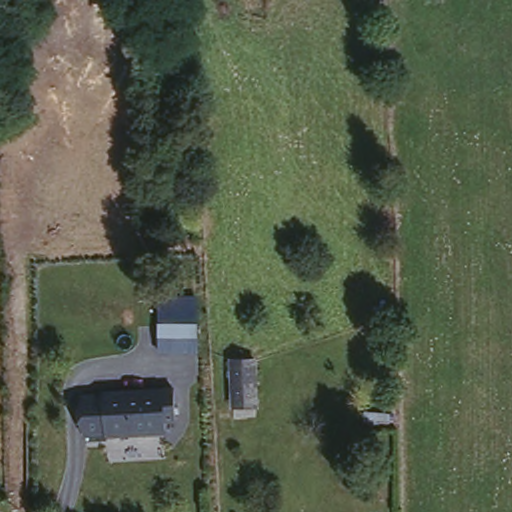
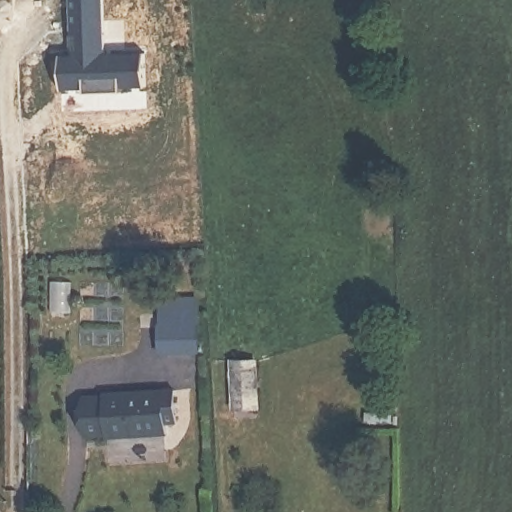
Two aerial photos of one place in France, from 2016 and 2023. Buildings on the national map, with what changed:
new [(67,52),(68,0),(102,0),(104,51),(142,51),(145,90),(59,93),(56,51),(67,52)]
unchanged [(161,347),(160,293),(202,294),(204,345),(161,347)]
unchanged [(230,352),(260,351),(260,405),(234,408),(230,352)]
unchanged [(105,393),(105,388),(164,388),(163,432),(105,433),(105,428),(86,428),(86,392),(105,393)]

